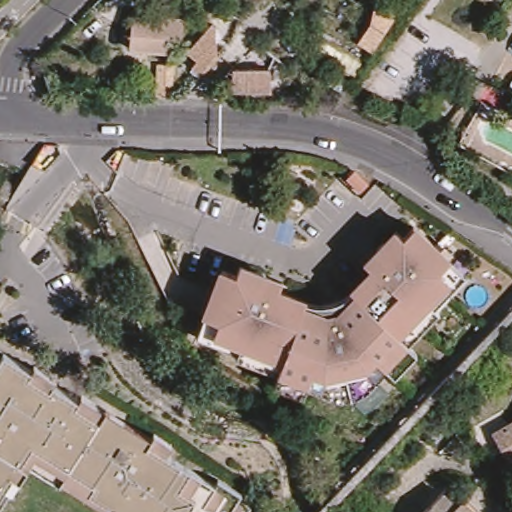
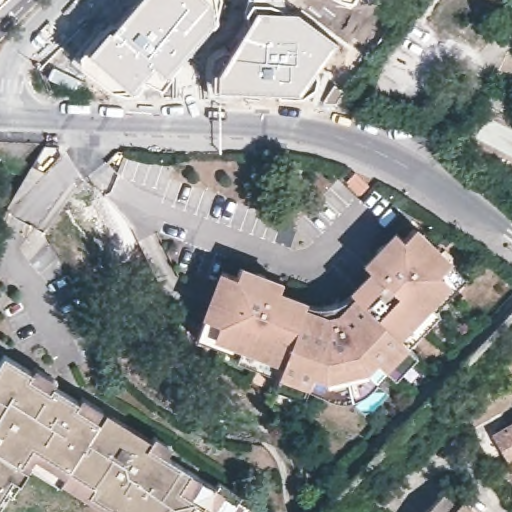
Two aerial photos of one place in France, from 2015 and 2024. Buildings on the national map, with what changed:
new [(0,5),(0,0),(5,0),(0,5)]
new [(216,16),(218,20),(214,26),(210,24),(170,72),(171,73),(161,86),(145,77),(137,89),(128,93),(113,88),(81,66),(79,53),(84,48),(88,50),(109,26),(111,27),(135,0),(220,0),(216,16)]
new [(283,10),(296,10),(337,41),(314,71),(316,76),(315,86),(303,95),(279,96),(278,90),(229,89),(230,98),(209,96),(206,77),(206,64),(211,52),(224,44),(231,49),(248,23),(244,15),(247,0),(283,0),(283,10)]
demolished [(377,8),(395,15),(371,53),(355,46),(377,8)]
demolished [(150,19),(158,19),(180,20),(180,41),(168,41),(168,54),(150,54),(144,54),(132,54),(132,19),(150,19)]
demolished [(210,27),(215,32),(216,68),(201,70),(200,55),(189,49),(210,27)]
demolished [(227,71),(268,71),(268,94),(227,94),(227,71)]
unchanged [(281,384),(286,373),(203,339),(215,313),(225,288),(201,278),(212,252),(236,262),(250,268),(251,264),(295,283),(293,286),(340,306),(375,270),(372,267),(405,234),(408,236),(418,225),(450,256),(454,252),(462,259),(458,264),(478,284),(416,347),(424,355),(402,378),(394,370),(360,405),(315,386),(311,397),(281,384)]
unchanged [(33,372),(37,367),(58,381),(54,388),(76,401),(79,397),(148,440),(152,434),(172,447),(166,457),(188,473),(211,488),(216,482),(237,495),(235,500),(246,508),(243,512),(104,512),(58,484),(61,480),(34,463),(21,487),(10,480),(0,494),(0,354),(2,352),(33,372)]
unchanged [(496,430),(512,420),(512,457),(496,430)]
unchanged [(459,502),(463,498),(469,501),(474,504),(479,512),(423,512),(445,490),(459,502)]

